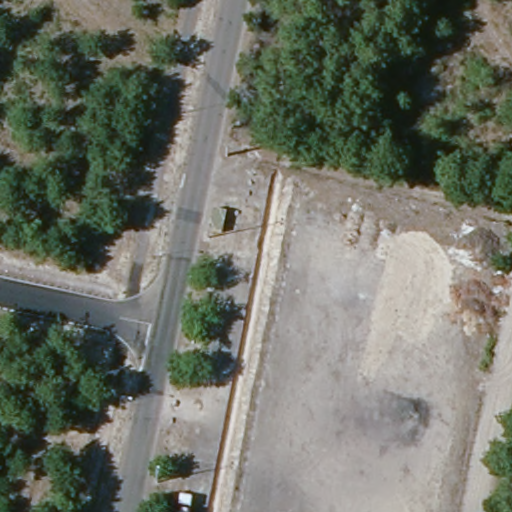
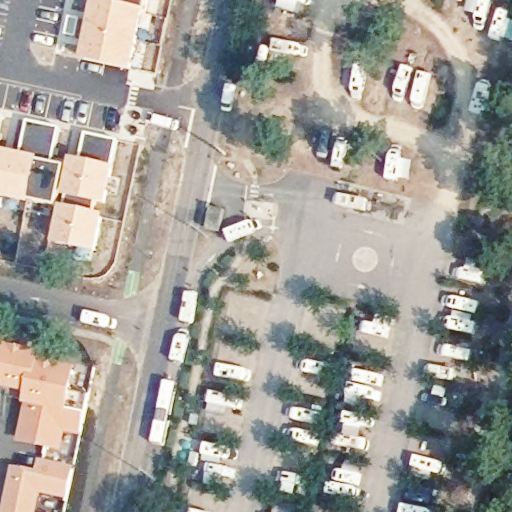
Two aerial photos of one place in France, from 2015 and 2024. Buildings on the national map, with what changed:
new [(95,0),(98,0),(103,1),(103,0),(149,0),(147,10),(130,73),(84,63),(87,35),(95,0)]
demolished [(481,85),(510,90),(498,139),(470,134),(481,85)]
new [(4,115),(0,132),(0,114),(4,115)]
new [(28,119),(62,128),(53,164),(41,160),(20,153),(28,119)]
new [(70,158),(79,160),(86,132),(119,140),(114,167),(105,206),(61,197),(67,168),(70,158)]
new [(20,153),(41,160),(30,203),(30,206),(0,199),(0,148),(20,153)]
new [(41,160),(53,164),(67,168),(61,197),(59,209),(30,203),(41,160)]
new [(60,206),(104,216),(95,254),(52,245),(60,206)]
new [(82,438),(67,435),(65,451),(21,443),(27,406),(29,400),(11,397),(12,391),(0,389),(0,350),(1,346),(47,355),(45,363),(80,369),(76,394),(92,396),(82,438)]
new [(39,472),(41,462),(76,468),(69,501),(43,495),(40,512),(5,512),(14,468),(39,472)]

